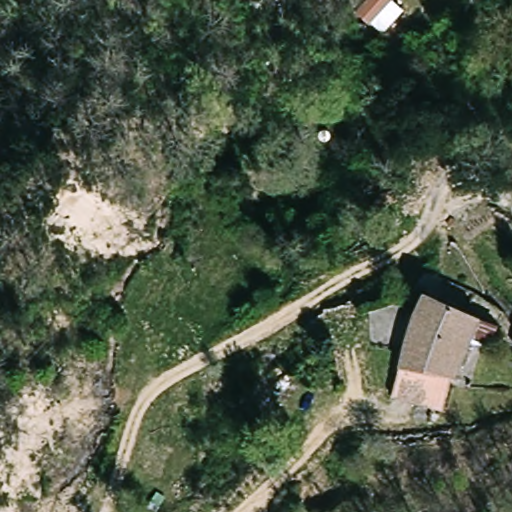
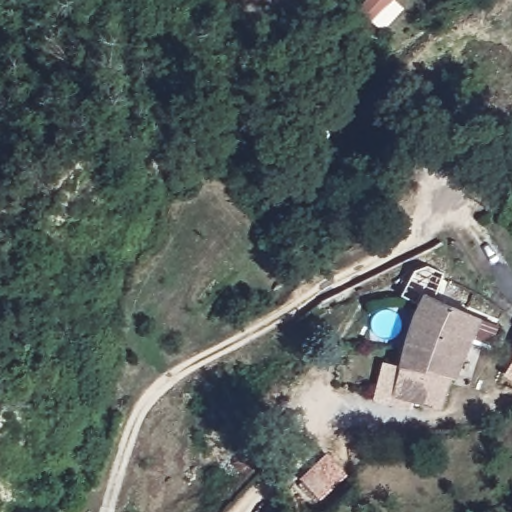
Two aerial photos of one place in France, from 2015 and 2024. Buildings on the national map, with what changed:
unchanged [(482,329),(460,373),(457,386),(407,371),(410,327),(420,307),(404,298),(430,263),(451,273),(439,292),(488,316),(482,329)]
unchanged [(454,407),(405,401),(407,371),(457,386),(454,407)]
new [(347,476),(320,502),(300,479),(326,454),(347,476)]

